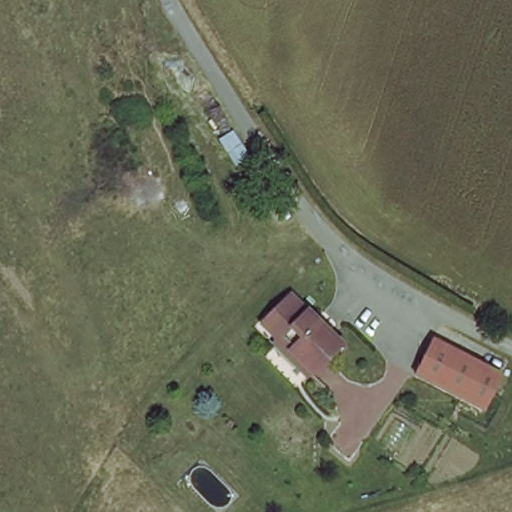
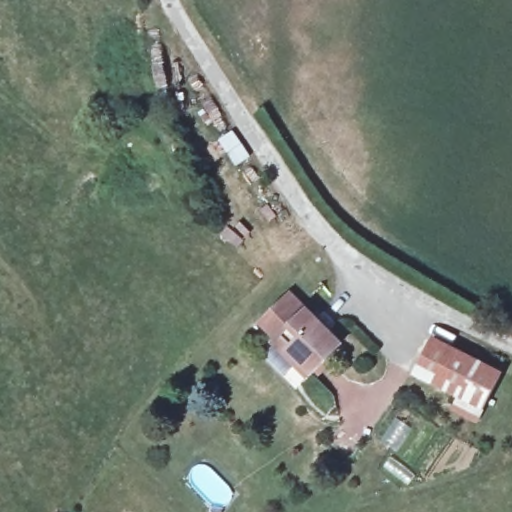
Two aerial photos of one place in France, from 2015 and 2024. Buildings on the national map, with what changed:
unchanged [(341,350),(315,375),(263,325),(288,300),(341,350)]
unchanged [(499,378),(480,413),(414,378),(433,342),(499,378)]

